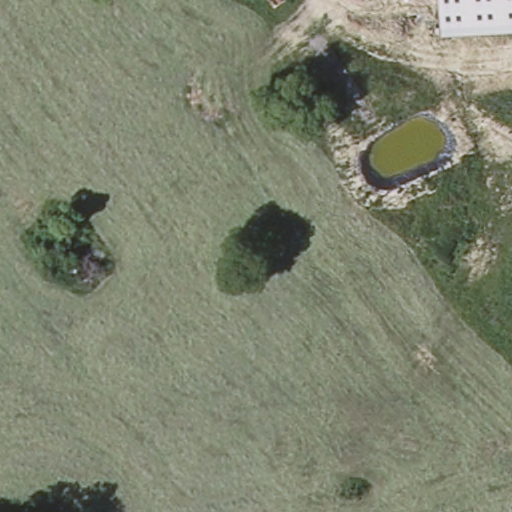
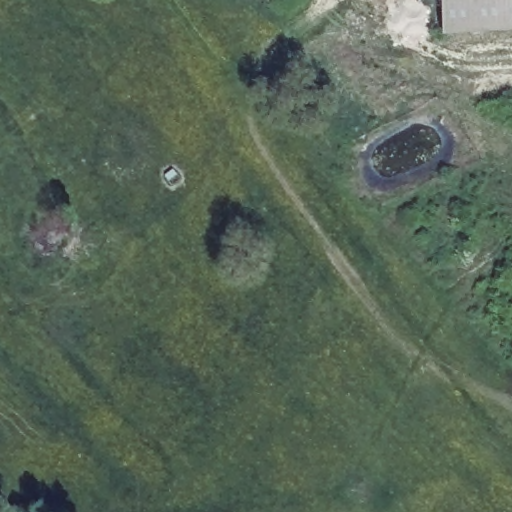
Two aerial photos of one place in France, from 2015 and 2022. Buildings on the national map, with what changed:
unchanged [(440,0),(512,0),(512,31),(442,34),(440,0)]

